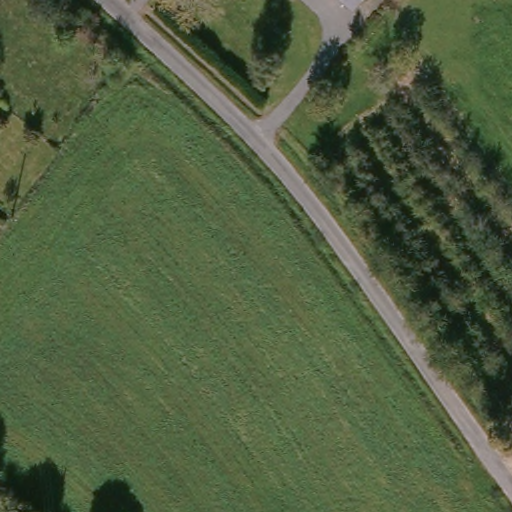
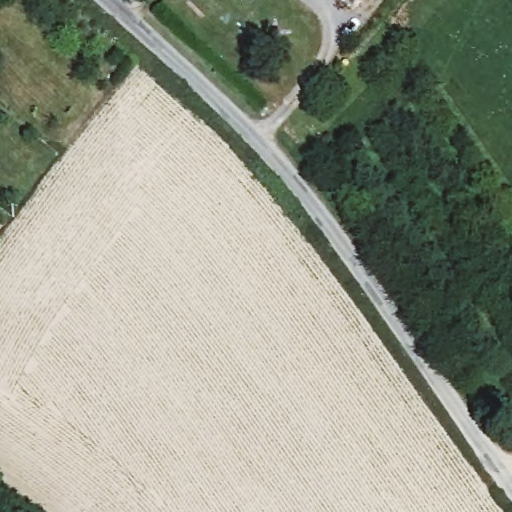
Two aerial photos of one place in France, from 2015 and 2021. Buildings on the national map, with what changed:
unchanged [(359,0),(360,0),(360,1),(359,0)]

